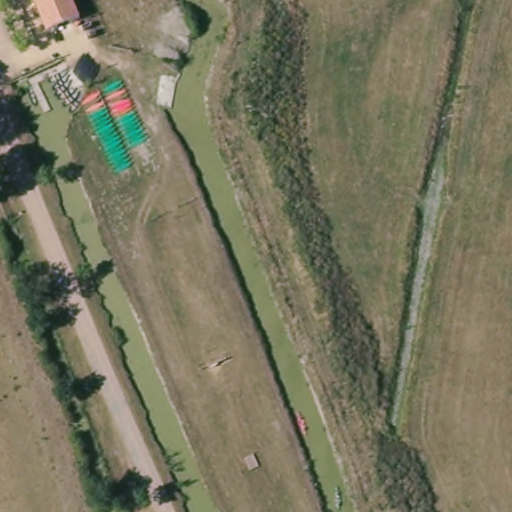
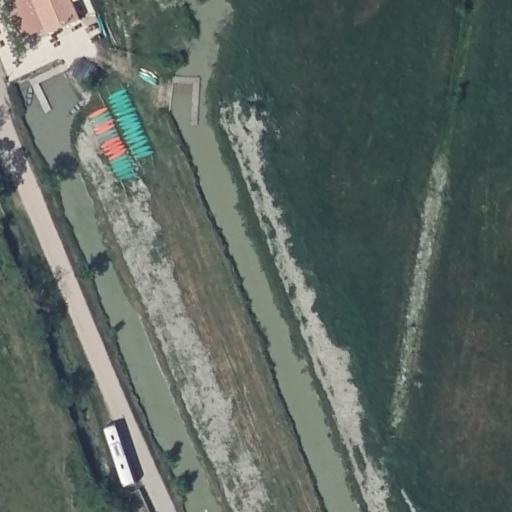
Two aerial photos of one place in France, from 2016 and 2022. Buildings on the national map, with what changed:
unchanged [(41,34),(27,0),(68,0),(76,20),(41,34)]

